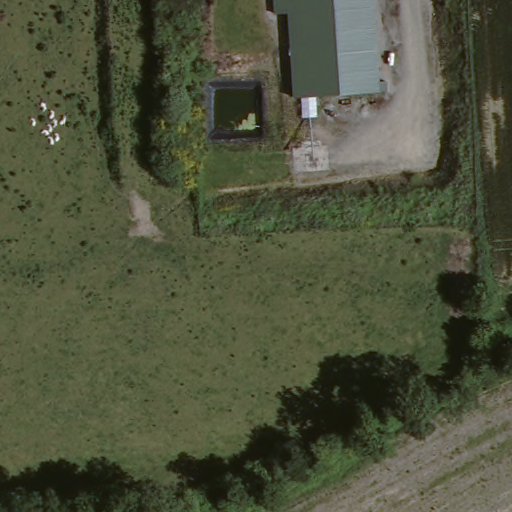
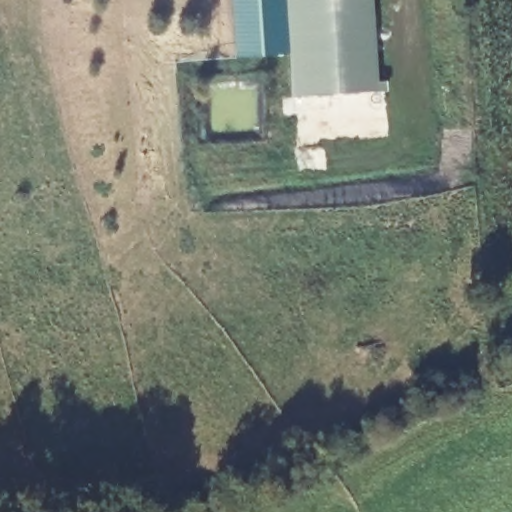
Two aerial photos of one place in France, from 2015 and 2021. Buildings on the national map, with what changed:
new [(235,57),(232,0),(295,0),(296,15),(299,53),(235,57)]
unchanged [(385,83),(395,82),(395,92),(358,95),(302,99),(296,15),(295,0),(378,0),(385,83)]

